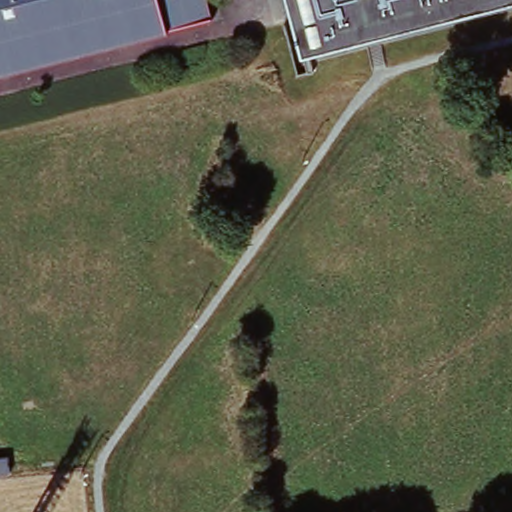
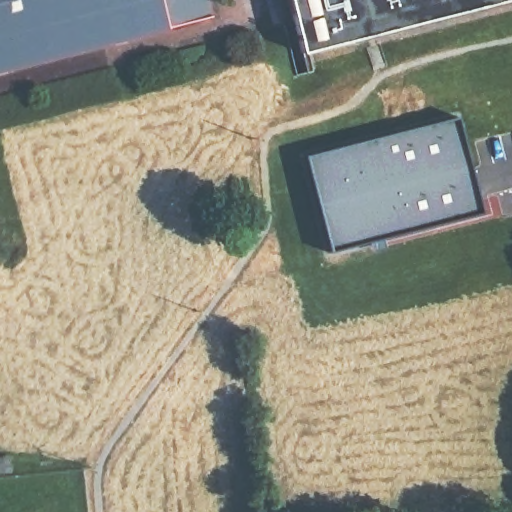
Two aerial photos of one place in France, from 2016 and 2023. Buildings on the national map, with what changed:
unchanged [(212,15),(0,68),(0,0),(209,0),(212,15)]
unchanged [(300,56),(285,0),(512,0),(512,1),(305,55),(310,74),(305,76),(300,56)]
new [(304,157),(458,116),(482,215),(331,253),(304,157)]

